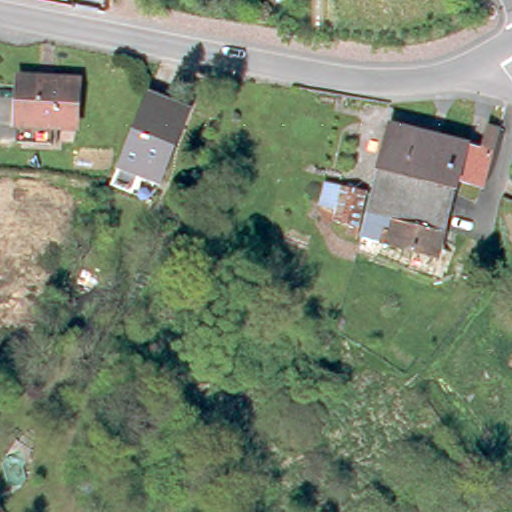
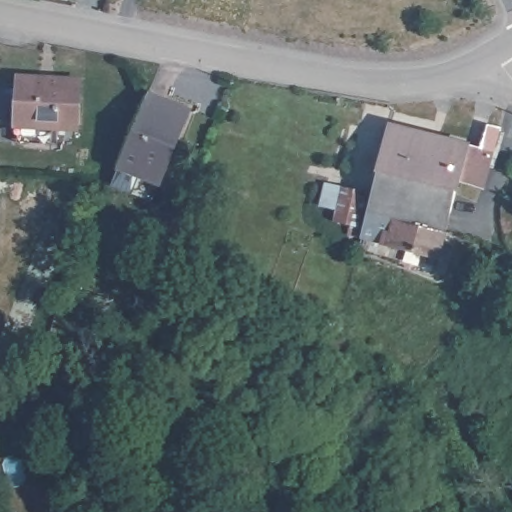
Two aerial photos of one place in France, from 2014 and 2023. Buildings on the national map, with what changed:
unchanged [(13,124),(14,79),(71,79),(70,125),(13,124)]
unchanged [(147,86),(188,103),(153,194),(110,174),(147,86)]
unchanged [(413,179),(377,170),(380,159),(389,125),(477,148),(484,127),(495,129),(488,151),(478,184),(456,180),(454,189),(413,179)]
unchanged [(377,170),(413,179),(454,189),(437,255),(387,242),(369,237),(367,242),(359,240),(360,235),(365,213),(377,170)]
unchanged [(355,224),(335,219),(345,187),(363,191),(355,224)]
unchanged [(259,305),(262,296),(289,305),(285,313),(259,305)]

